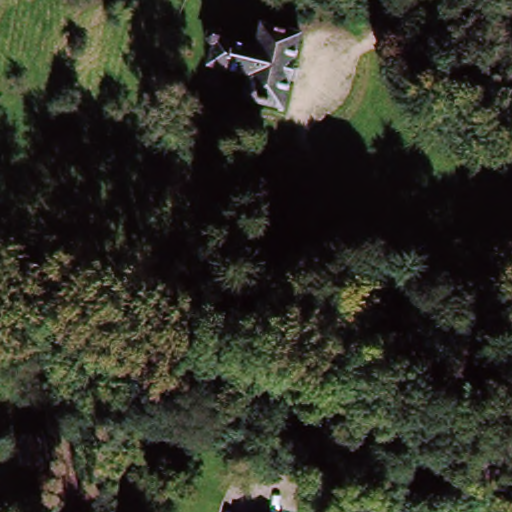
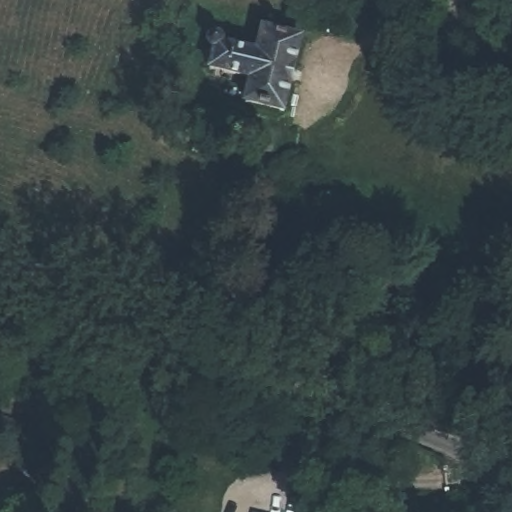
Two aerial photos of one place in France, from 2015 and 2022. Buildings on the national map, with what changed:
unchanged [(252,80),(208,70),(215,42),(257,53),(262,28),(303,37),(287,111),(247,103),(252,80)]
unchanged [(0,278),(0,262),(1,255),(48,264),(43,284),(0,278)]
unchanged [(194,296),(294,316),(288,343),(187,324),(194,296)]
unchanged [(410,325),(399,376),(372,371),(374,365),(344,359),(353,314),(410,325)]
unchanged [(285,355),(185,335),(187,324),(288,343),(285,355)]
unchanged [(44,412),(0,407),(0,387),(46,393),(44,412)]

